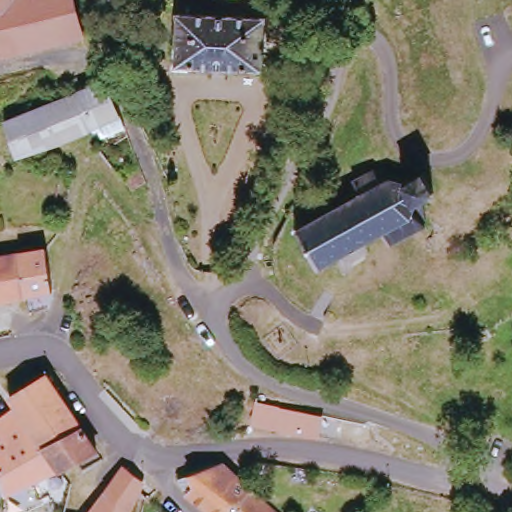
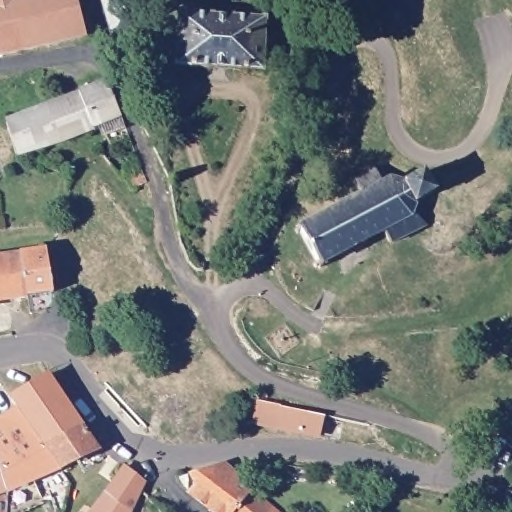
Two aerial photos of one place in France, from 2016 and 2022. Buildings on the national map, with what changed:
unchanged [(0,0),(73,0),(85,38),(0,62),(0,0)]
unchanged [(174,69),(178,14),(270,21),(264,75),(174,69)]
unchanged [(106,142),(95,120),(89,121),(89,123),(13,152),(2,122),(104,79),(118,112),(125,132),(106,142)]
unchanged [(319,269),(315,271),(313,267),(317,265),(301,233),(296,235),(294,231),(299,229),(296,226),(305,221),(306,225),(364,195),(358,183),(379,172),(386,183),(394,180),(409,190),(429,180),(439,200),(423,209),(421,217),(427,230),(391,249),(389,247),(384,236),(366,245),(368,249),(364,251),(361,247),(341,259),(343,262),(338,265),(336,261),(326,266),(328,269),(321,273),(319,269)]
unchanged [(143,187),(128,194),(122,183),(120,181),(137,173),(143,187)]
unchanged [(53,294),(26,298),(0,302),(0,259),(47,252),(53,294)]
unchanged [(62,469),(23,410),(24,408),(17,396),(51,375),(52,375),(101,450),(78,461),(62,469)]
unchanged [(281,432),(255,428),(256,424),(261,404),(284,409),(289,411),(289,413),(324,420),(319,437),(281,432)]
unchanged [(9,453),(0,437),(0,425),(23,410),(62,469),(45,477),(10,495),(8,455),(9,453)]
unchanged [(8,496),(0,499),(0,458),(8,455),(10,495),(8,496)]
unchanged [(144,482),(141,488),(138,491),(130,512),(89,512),(123,466),(144,482)]
unchanged [(202,512),(191,503),(173,484),(211,467),(227,480),(244,496),(232,512),(202,512)]
unchanged [(263,512),(232,512),(244,496),(263,512)]

